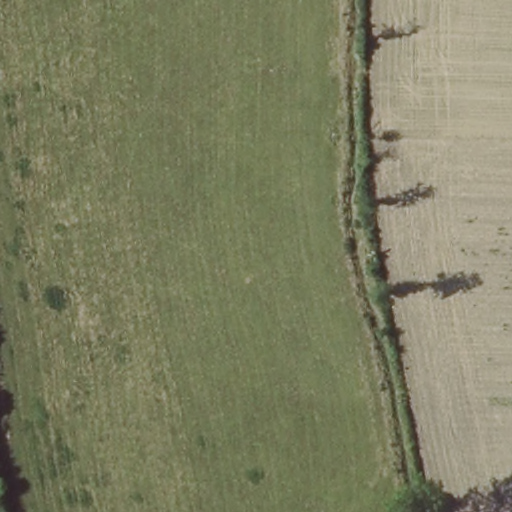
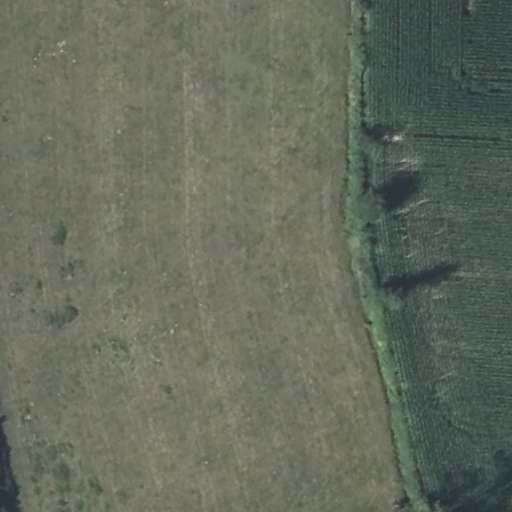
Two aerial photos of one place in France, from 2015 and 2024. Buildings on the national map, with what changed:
[]

